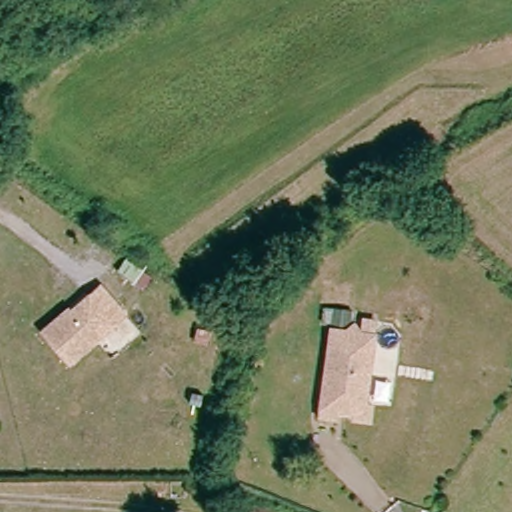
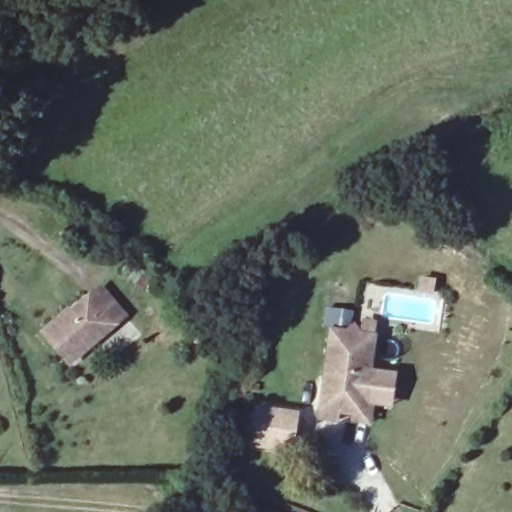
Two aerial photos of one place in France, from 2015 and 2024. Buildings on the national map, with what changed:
unchanged [(102,348),(81,367),(66,351),(67,350),(55,335),(80,315),(82,317),(102,300),(112,292),(125,306),(135,320),(102,348)]
unchanged [(361,427),(362,419),(350,419),(350,418),(343,418),(343,424),(326,423),(327,399),(329,399),(336,335),(350,335),(350,347),(361,347),(361,338),(381,339),(375,400),(373,400),(373,412),(376,412),(376,427),(361,427)]
new [(262,411),(305,416),(300,454),(258,449),(262,411)]

